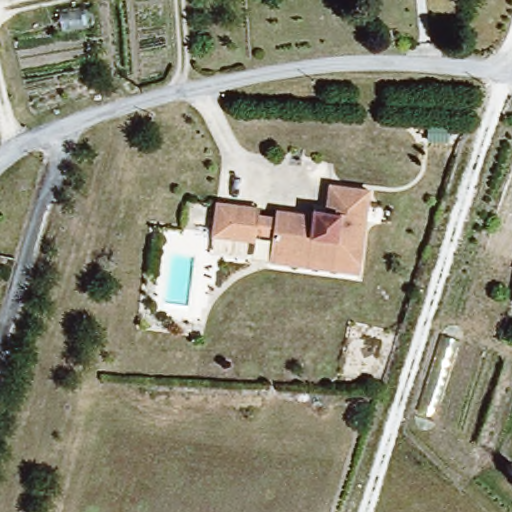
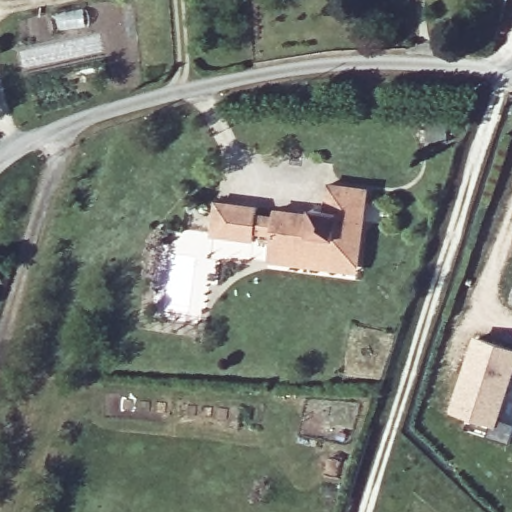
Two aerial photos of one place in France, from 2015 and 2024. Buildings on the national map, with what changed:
demolished [(512,173),(512,175),(512,191),(490,190),(503,142),(512,144),(512,173)]
unchanged [(276,264),(275,256),(278,236),(258,233),(257,242),(216,237),(220,206),(261,209),(261,218),(279,219),(280,211),(330,217),(333,186),(369,189),(363,267),(361,267),(360,274),(276,264)]
unchanged [(512,291),(512,300),(509,299),(512,291)]
new [(512,351),(512,368),(495,421),(455,410),(476,339),(512,351)]

